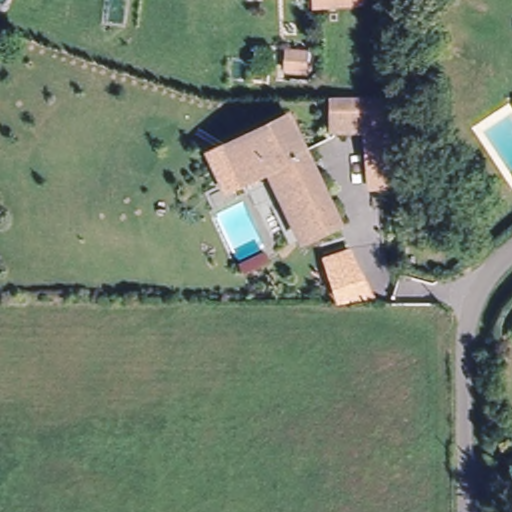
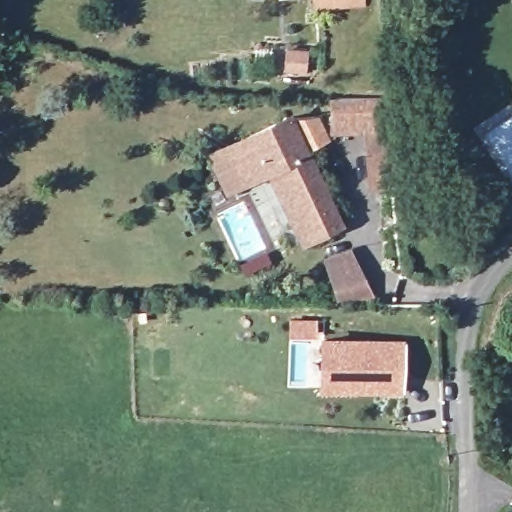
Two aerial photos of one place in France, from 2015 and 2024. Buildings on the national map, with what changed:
unchanged [(362,2),(317,5),(317,0),(362,0),(362,2)]
unchanged [(330,56),(327,75),(302,72),(305,52),(330,56)]
unchanged [(390,102),(392,137),(332,137),(333,102),(390,102)]
unchanged [(298,147),(263,166),(238,177),(222,145),(282,115),(298,147)]
unchanged [(263,166),(298,147),(317,186),(282,204),(263,166)]
unchanged [(317,186),(334,219),(298,237),(282,204),(317,186)]
unchanged [(352,246),(375,297),(337,305),(323,256),(352,246)]
new [(405,339),(403,392),(318,391),(320,336),(405,339)]

